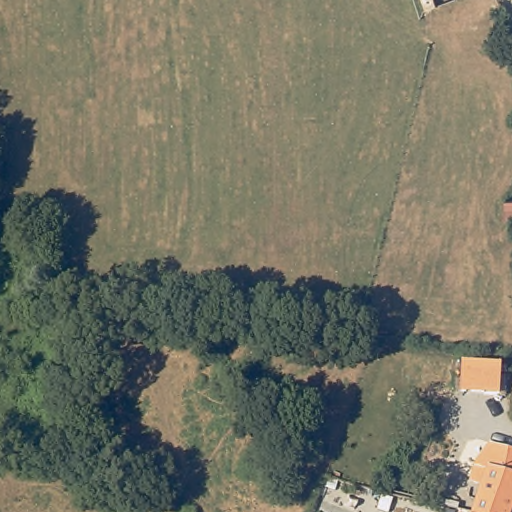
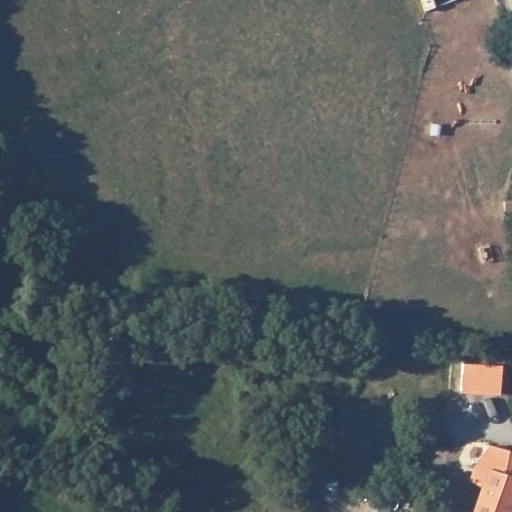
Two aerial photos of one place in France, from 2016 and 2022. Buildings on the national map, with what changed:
unchanged [(503,200),(512,199),(512,220),(504,220),(503,200)]
unchanged [(461,392),(463,362),(502,363),(498,394),(461,392)]
unchanged [(470,479),(475,464),(490,442),(512,450),(512,506),(510,512),(472,512),(480,483),(470,479)]

